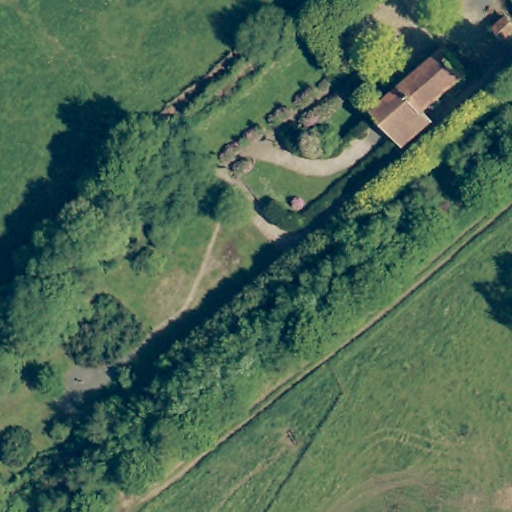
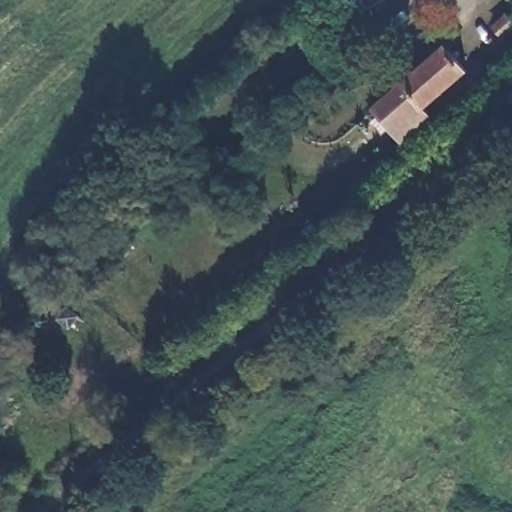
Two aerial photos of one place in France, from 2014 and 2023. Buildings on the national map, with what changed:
unchanged [(448,53),(469,75),(400,138),(379,114),(448,53)]

